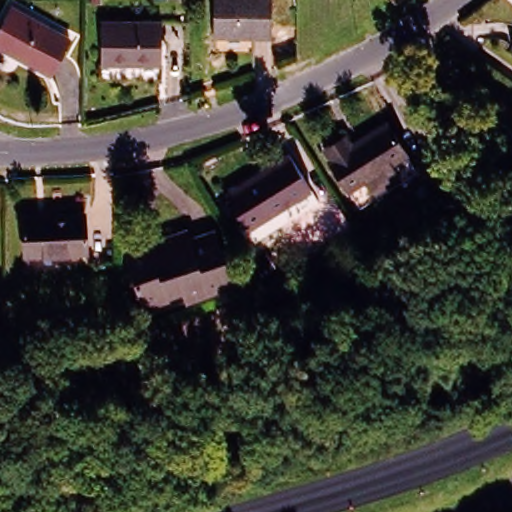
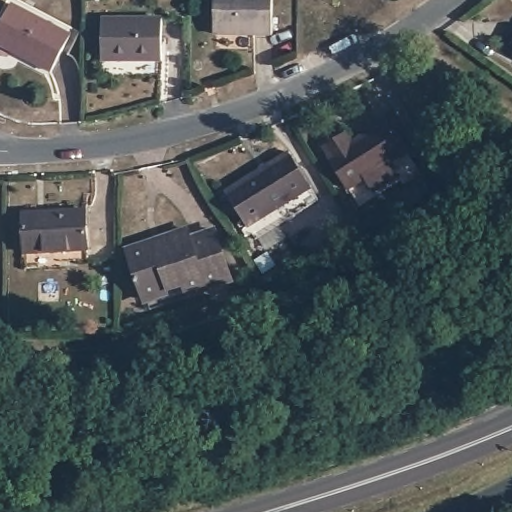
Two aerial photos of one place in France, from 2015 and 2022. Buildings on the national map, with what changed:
unchanged [(270,33),(213,32),(213,0),(270,0),(270,33)]
unchanged [(16,3),(72,33),(53,71),(25,56),(0,43),(0,32),(16,3)]
unchanged [(155,55),(95,54),(95,12),(155,13),(155,55)]
unchanged [(512,44),(512,47),(511,46),(512,44)]
unchanged [(346,182),(327,154),(329,153),(322,142),(344,129),(351,138),(386,116),(404,144),(416,162),(383,184),(358,200),(346,182)]
unchanged [(308,181),(244,219),(225,187),(288,149),(308,181)]
unchanged [(85,244),(23,248),(20,209),(83,205),(85,244)]
unchanged [(151,245),(165,241),(164,238),(186,231),(189,239),(214,232),(230,278),(182,295),(179,288),(141,300),(125,252),(150,243),(151,245)]

